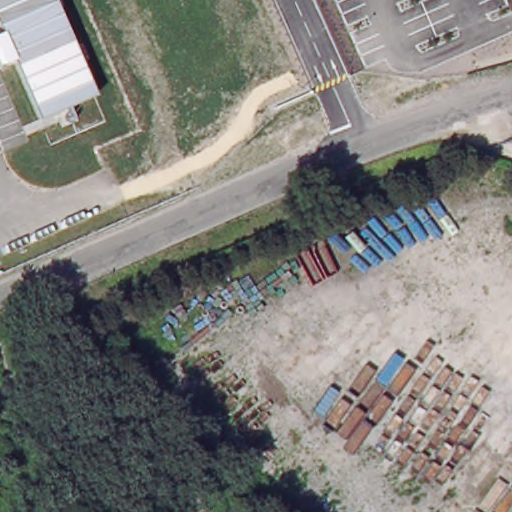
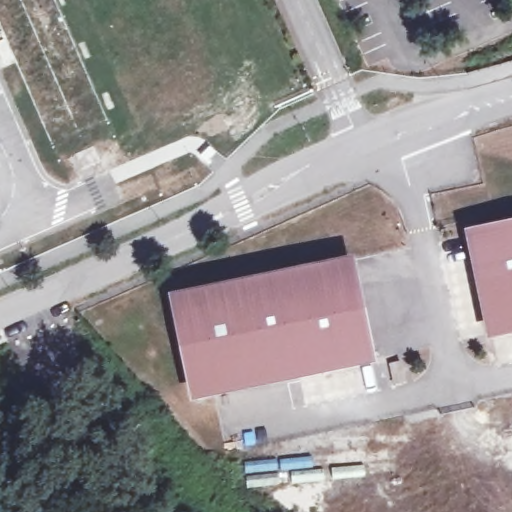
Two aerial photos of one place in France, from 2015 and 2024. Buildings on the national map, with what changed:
unchanged [(15,61),(4,65),(0,56),(0,32),(1,31),(0,29),(0,0),(54,0),(95,96),(39,119),(15,61)]
new [(95,96),(114,140),(60,163),(39,119),(95,96)]
new [(463,230),(512,220),(512,335),(486,340),(463,230)]
new [(168,295),(354,256),(376,363),(190,402),(168,295)]

